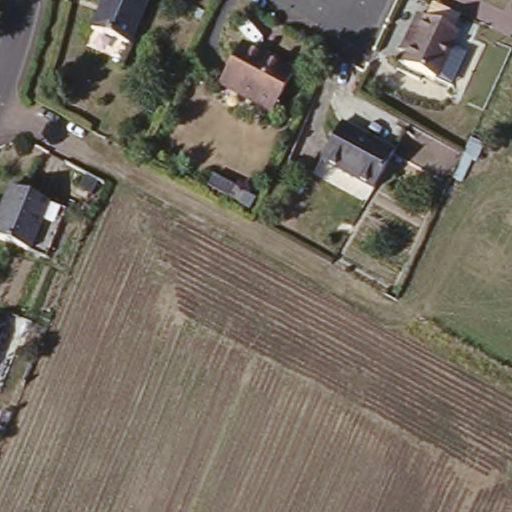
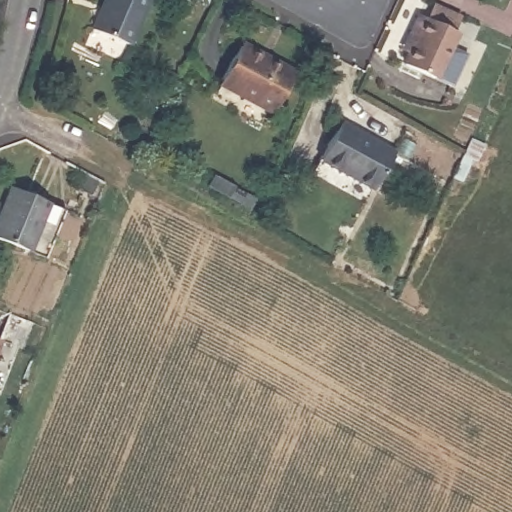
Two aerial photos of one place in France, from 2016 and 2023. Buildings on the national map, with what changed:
unchanged [(92,37),(108,0),(142,0),(149,3),(127,52),(92,37)]
unchanged [(403,52),(412,36),(420,19),(458,39),(437,80),(406,65),(411,56),(403,52)]
unchanged [(222,86),(238,54),(266,69),(268,65),(290,76),(268,120),(231,101),(218,95),(222,86)]
unchanged [(375,192),(323,162),(345,124),(397,155),(375,192)]
unchanged [(7,193),(46,209),(27,256),(0,245),(0,209),(7,193)]

